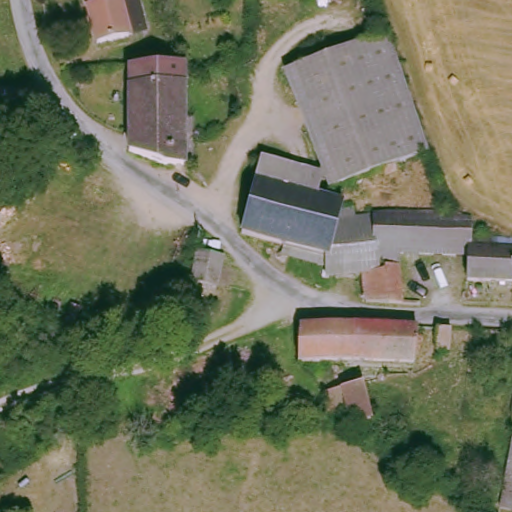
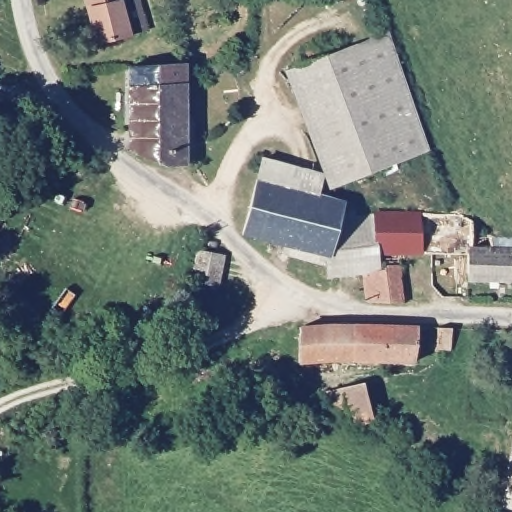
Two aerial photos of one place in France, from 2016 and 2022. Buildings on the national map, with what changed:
unchanged [(136,31),(118,34),(93,38),(84,37),(79,0),(131,0),(136,31)]
unchanged [(281,66),(382,28),(425,147),(325,184),(317,169),(281,66)]
unchanged [(180,143),(160,144),(129,142),(127,72),(156,71),(178,71),(180,143)]
unchanged [(250,184),(256,156),(317,169),(325,184),(322,195),(340,202),(335,234),(368,230),(369,214),(470,219),(469,251),(512,255),(511,280),(463,278),(463,263),(398,253),(396,278),(410,278),(410,287),(417,288),(416,298),(360,301),(360,270),(321,276),(322,254),(238,231),(250,184)]
unchanged [(225,259),(219,291),(199,288),(206,255),(225,259)]
unchanged [(452,347),(433,346),(433,322),(454,321),(452,347)]
unchanged [(411,360),(320,362),(296,369),(293,328),(362,324),(412,323),(411,360)]
unchanged [(320,389),(340,385),(360,381),(368,419),(345,422),(345,414),(324,413),(320,389)]
unchanged [(512,512),(494,512),(512,426),(512,512)]

